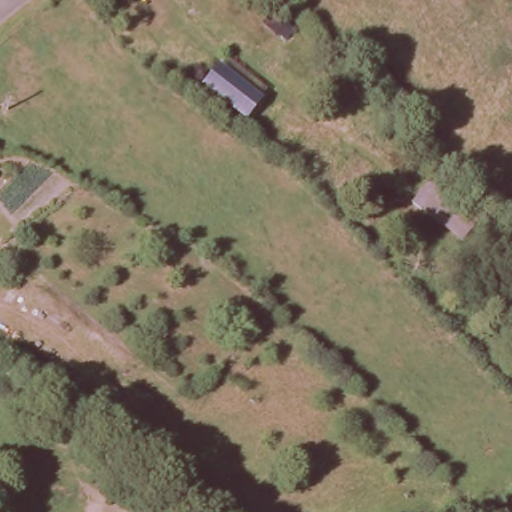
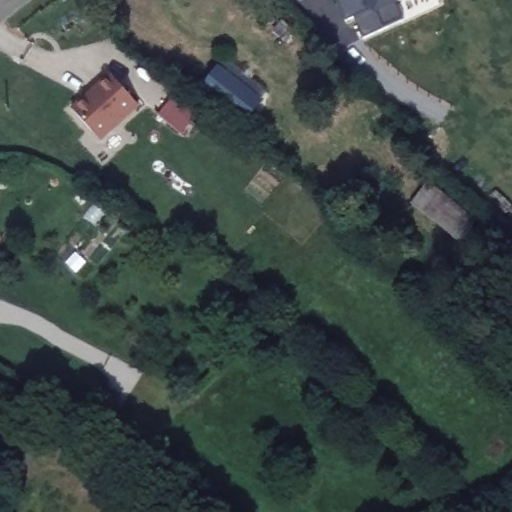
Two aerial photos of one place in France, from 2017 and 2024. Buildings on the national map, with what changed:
new [(404,21),(363,38),(354,18),(346,21),(336,0),(407,0),(397,4),(404,21)]
unchanged [(224,65),(267,98),(247,119),(203,87),(224,65)]
new [(73,107),(84,97),(86,100),(111,76),(136,102),(100,137),(73,107)]
unchanged [(431,182),(476,219),(458,241),(411,207),(431,182)]

